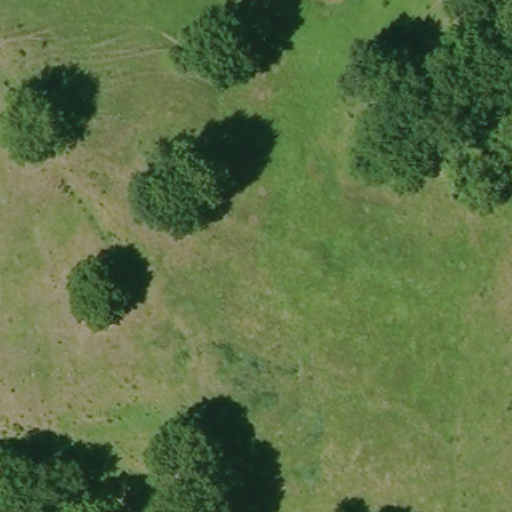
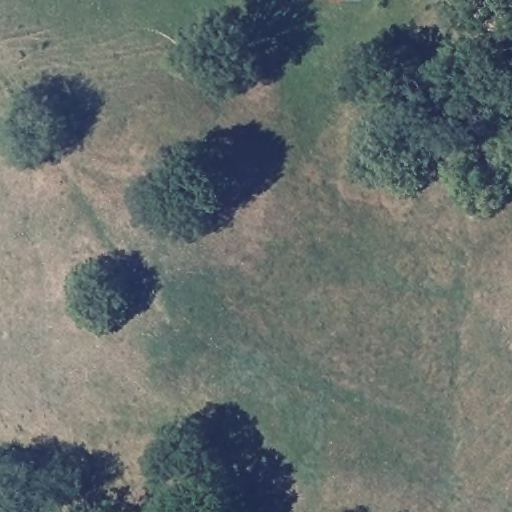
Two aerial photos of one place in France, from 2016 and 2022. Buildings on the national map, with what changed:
unchanged [(361,0),(361,4),(325,5),(326,0),(361,0)]

